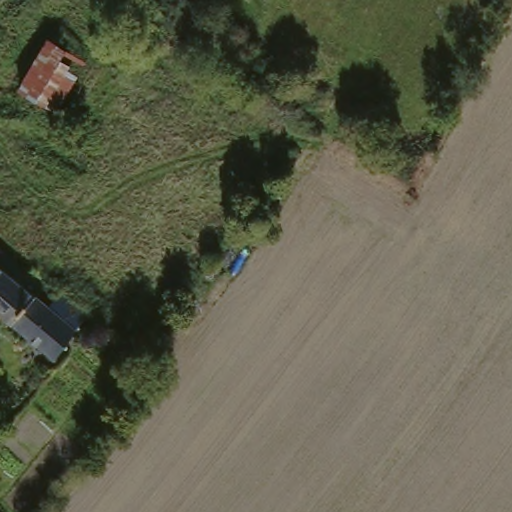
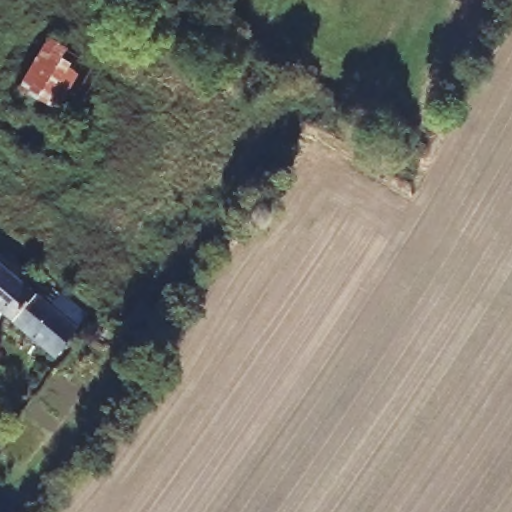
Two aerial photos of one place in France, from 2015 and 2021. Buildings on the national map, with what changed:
unchanged [(99,74),(76,121),(20,94),(44,46),(99,74)]
unchanged [(58,290),(94,313),(93,314),(80,330),(58,358),(19,329),(11,341),(0,332),(0,266),(0,267),(47,303),(58,290)]

